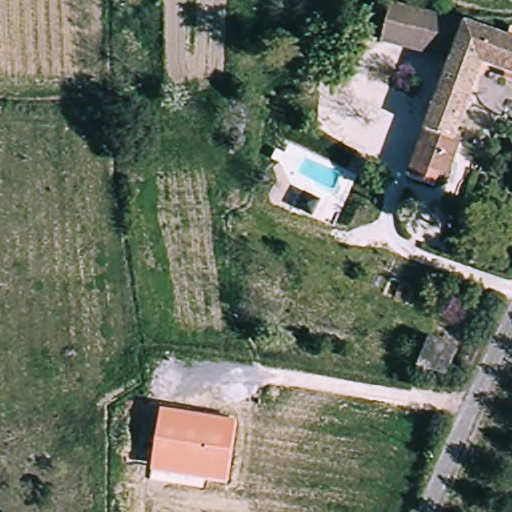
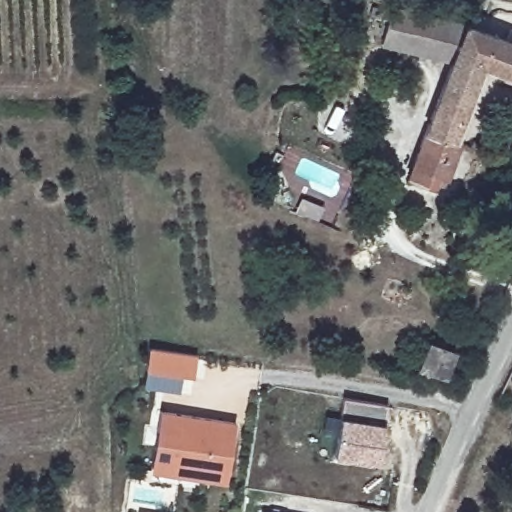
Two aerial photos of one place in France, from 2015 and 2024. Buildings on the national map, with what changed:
unchanged [(448,139),(457,143),(440,182),(406,170),(450,64),(379,40),(387,7),(448,18),(502,38),(508,26),(512,27),(512,78),(479,65),(448,139)]
unchanged [(419,368),(428,340),(457,349),(446,376),(419,368)]
new [(197,355),(195,376),(150,370),(153,349),(197,355)]
new [(335,455),(341,415),(345,398),(389,404),(385,422),(378,462),(335,455)]
unchanged [(236,421),(225,482),(153,470),(162,408),(236,421)]

